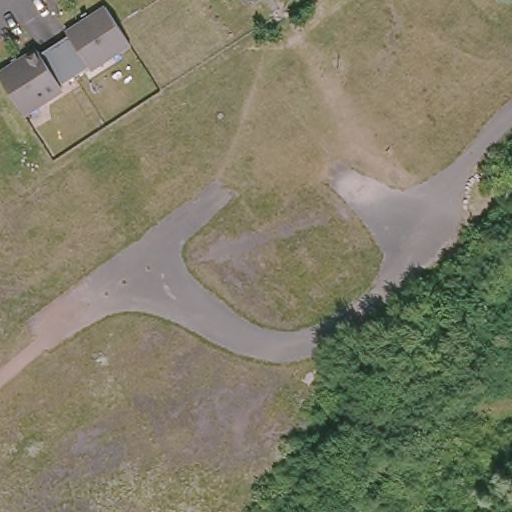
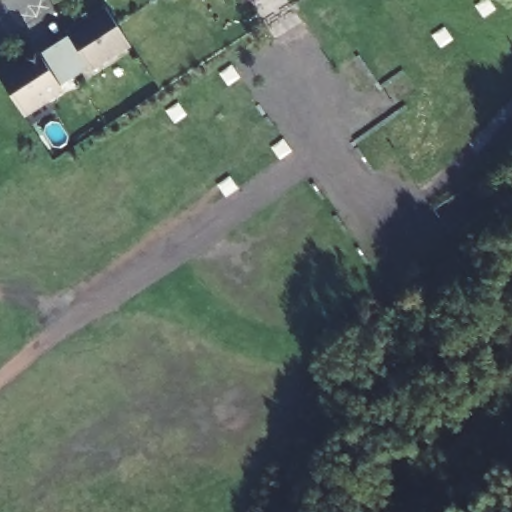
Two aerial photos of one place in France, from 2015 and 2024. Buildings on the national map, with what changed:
unchanged [(42,53),(45,56),(72,37),(70,34),(110,9),(122,27),(135,46),(95,72),(93,69),(79,79),(65,87),(67,91),(28,116),(3,79),(42,53)]

